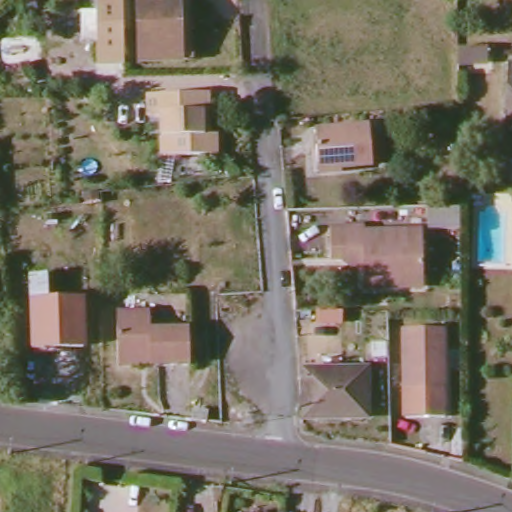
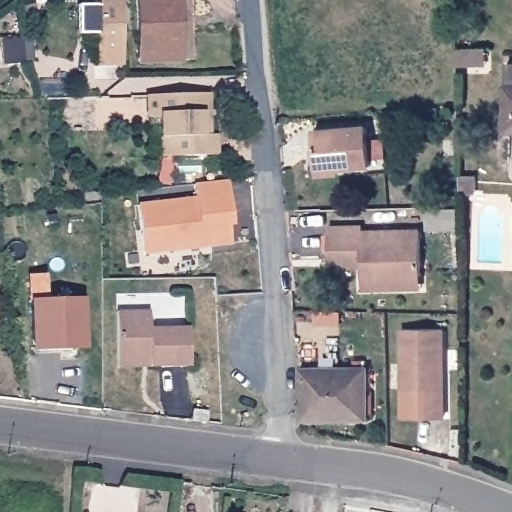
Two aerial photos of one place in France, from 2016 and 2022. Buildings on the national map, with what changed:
unchanged [(100,69),(96,0),(123,0),(126,66),(100,69)]
unchanged [(139,0),(179,0),(179,68),(139,68),(139,0)]
new [(3,40),(33,40),(33,65),(3,65),(3,40)]
unchanged [(457,64),(457,50),(457,49),(487,48),(487,64),(457,64)]
unchanged [(501,135),(506,67),(512,67),(512,136),(501,135)]
unchanged [(214,134),(214,155),(159,155),(158,116),(148,116),(147,95),(158,95),(199,94),(208,95),(208,120),(208,134),(214,134)]
unchanged [(342,171),(341,165),(320,166),(318,132),(371,130),(373,170),(342,171)]
new [(144,254),(138,202),(196,195),(193,184),(228,180),(233,226),(229,226),(231,246),(144,254)]
unchanged [(463,200),(463,195),(463,181),(478,181),(478,195),(478,200),(463,200)]
unchanged [(434,233),(433,211),(461,211),(461,233),(434,233)]
unchanged [(356,286),(356,278),(356,255),(325,254),(324,226),(360,226),(360,230),(417,231),(417,273),(417,287),(356,286)]
unchanged [(31,348),(29,276),(44,276),(44,300),(81,300),(81,348),(31,348)]
unchanged [(118,360),(116,308),(149,306),(151,323),(188,322),(189,365),(151,367),(118,369),(118,360)]
unchanged [(404,392),(403,331),(444,331),(446,420),(428,420),(405,421),(404,392)]
unchanged [(304,420),(303,374),(366,370),(368,419),(304,420)]
unchanged [(195,413),(196,403),(211,405),(209,415),(195,413)]

